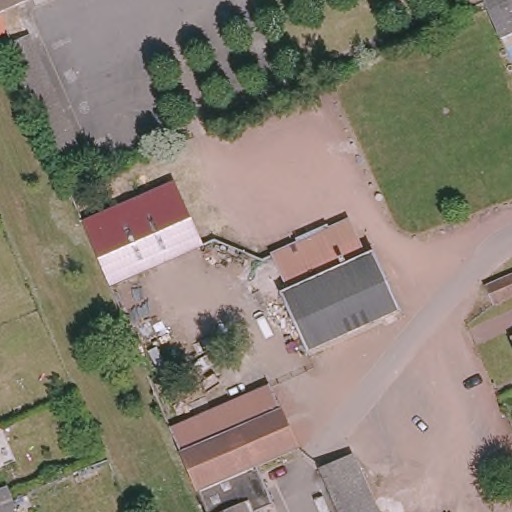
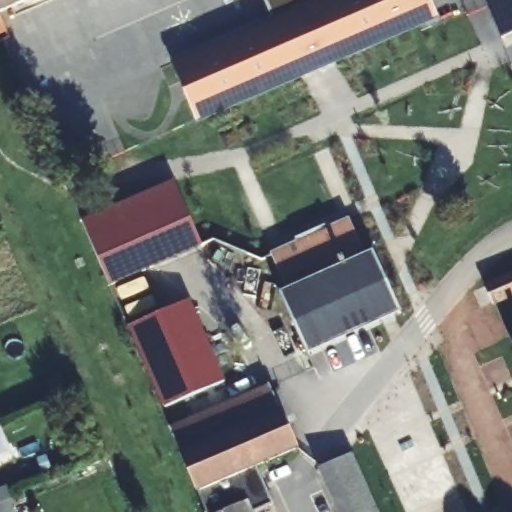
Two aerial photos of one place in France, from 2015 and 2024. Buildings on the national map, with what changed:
unchanged [(0,0),(23,0),(0,10),(0,0)]
new [(265,4),(281,1),(286,2),(288,2),(294,15),(306,10),(301,1),(301,0),(429,0),(434,12),(198,116),(174,60),(273,17),(265,4)]
new [(306,10),(294,15),(288,2),(286,2),(281,1),(265,4),(263,0),(301,0),(301,1),(306,10)]
unchanged [(501,36),(485,0),(512,0),(512,31),(501,36)]
unchanged [(196,245),(108,286),(78,221),(168,181),(196,245)]
unchanged [(363,251),(289,285),(272,247),(346,215),(363,251)]
unchanged [(399,305),(305,346),(281,290),(374,249),(399,305)]
unchanged [(484,283),(512,270),(512,290),(492,299),(484,283)]
new [(226,382),(163,409),(128,327),(191,299),(226,382)]
unchanged [(504,337),(512,333),(512,355),(504,337)]
unchanged [(168,426),(269,383),(279,407),(296,445),(255,463),(271,501),(250,510),(246,501),(221,512),(204,512),(194,489),(178,451),(168,426)]
unchanged [(316,469),(351,454),(351,453),(378,512),(336,512),(316,469)]
unchanged [(3,504),(1,498),(0,499),(0,485),(7,482),(12,493),(14,499),(18,506),(6,512),(3,504)]
unchanged [(250,510),(251,512),(221,512),(246,501),(250,510)]

